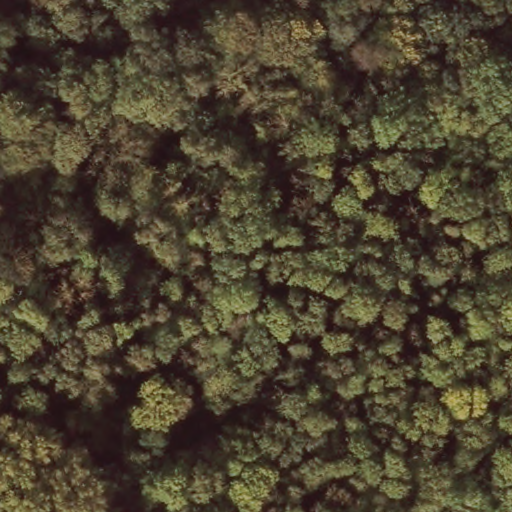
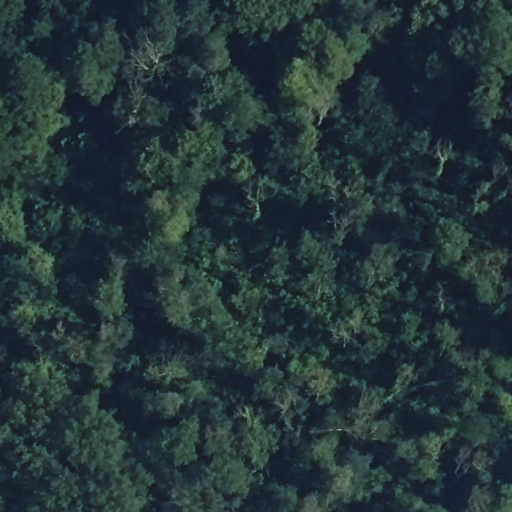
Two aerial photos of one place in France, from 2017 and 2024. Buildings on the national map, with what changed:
[]

